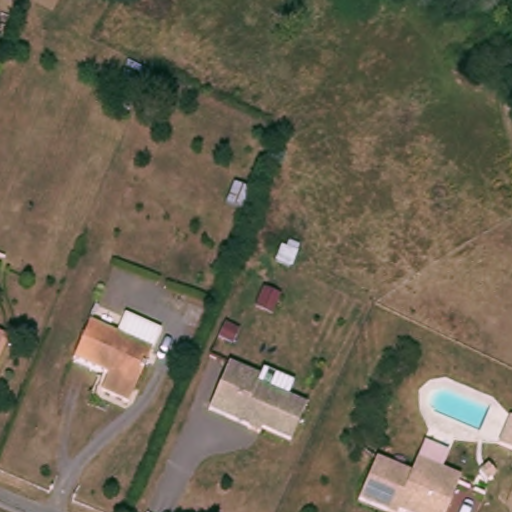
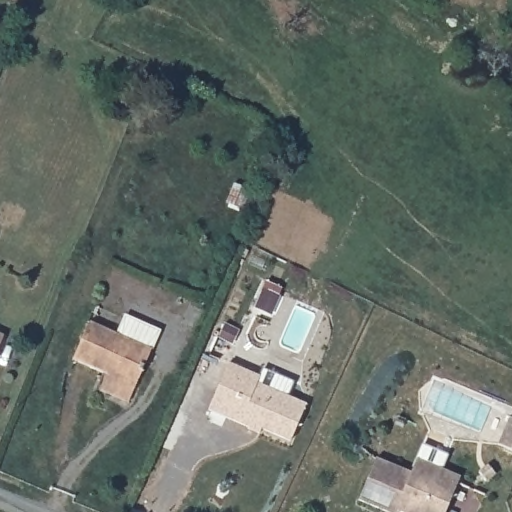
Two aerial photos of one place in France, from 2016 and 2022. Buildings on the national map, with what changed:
unchanged [(154,343),(134,400),(104,388),(110,372),(81,360),(95,321),(154,343)]
unchanged [(12,336),(0,371),(0,331),(12,336)]
unchanged [(309,415),(293,451),(255,433),(253,437),(212,418),(232,372),(263,387),(261,393),(309,415)]
unchanged [(494,447),(480,441),(492,413),(506,419),(494,447)]
unchanged [(379,465),(414,480),(416,475),(420,467),(444,477),(463,485),(451,512),(375,512),(362,506),(379,465)]

